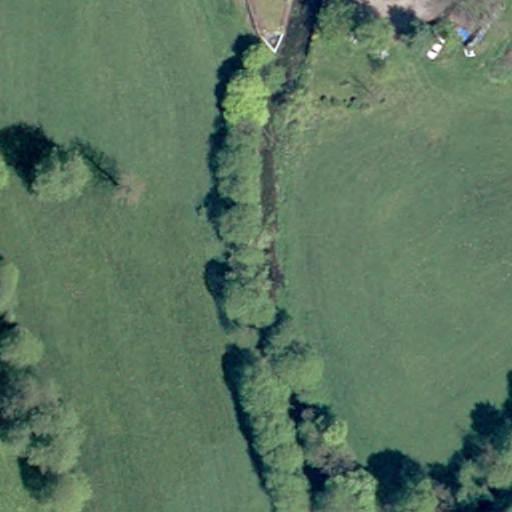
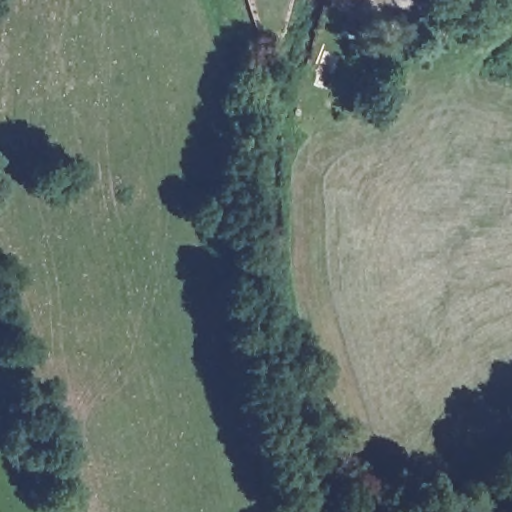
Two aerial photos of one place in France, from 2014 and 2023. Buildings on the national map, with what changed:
unchanged [(484,35),(467,27),(472,14),(490,23),(484,35)]

